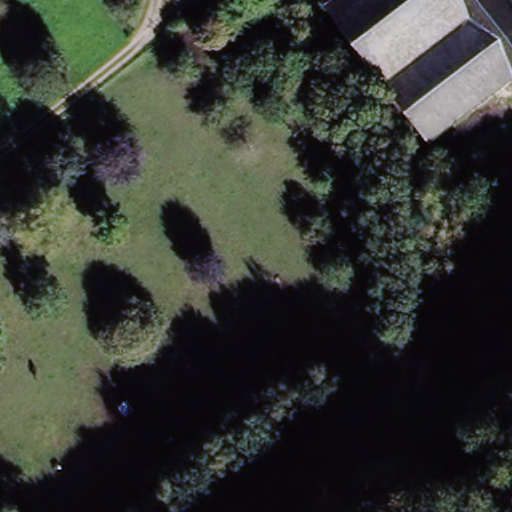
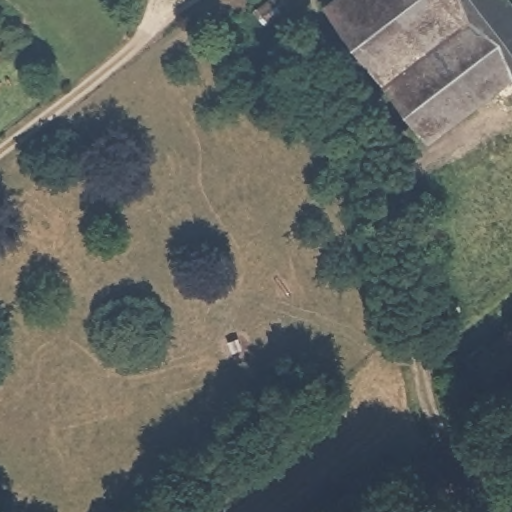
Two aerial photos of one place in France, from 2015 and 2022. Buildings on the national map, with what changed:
unchanged [(324,0),(444,0),(508,84),(431,141),(323,1),(324,0)]
unchanged [(444,0),(507,0),(512,6),(512,81),(508,84),(444,0)]
unchanged [(512,374),(482,397),(452,356),(470,342),(512,313),(512,374)]

